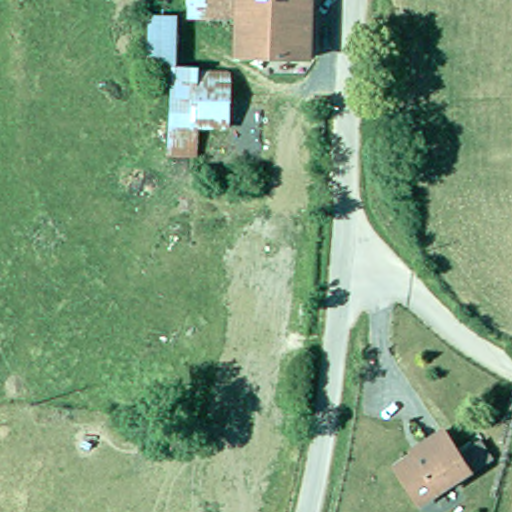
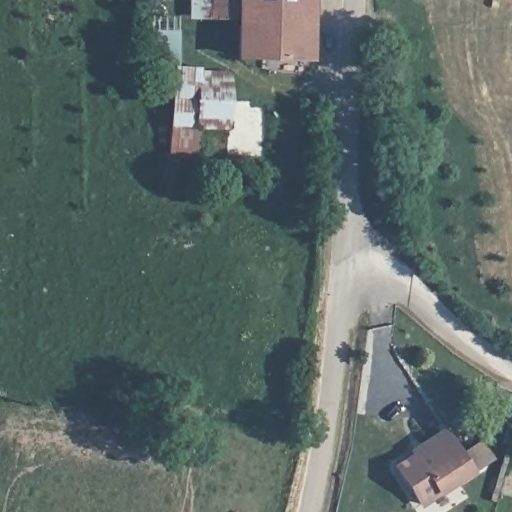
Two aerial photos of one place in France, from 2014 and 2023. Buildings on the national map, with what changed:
unchanged [(189,0),(310,0),(309,62),(237,60),(237,25),(210,22),(189,20),(189,0)]
unchanged [(154,20),(181,20),(182,72),(153,72),(154,20)]
unchanged [(202,130),(180,129),(182,72),(203,74),(202,130)]
unchanged [(203,74),(234,75),(232,131),(202,130),(203,74)]
unchanged [(473,472),(425,506),(399,468),(417,454),(414,450),(427,441),(445,430),(473,472)]

